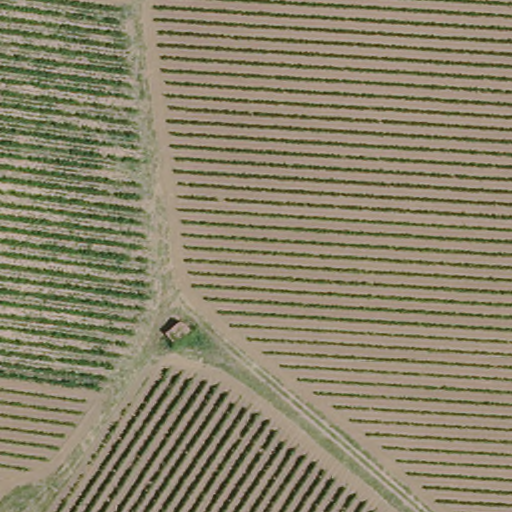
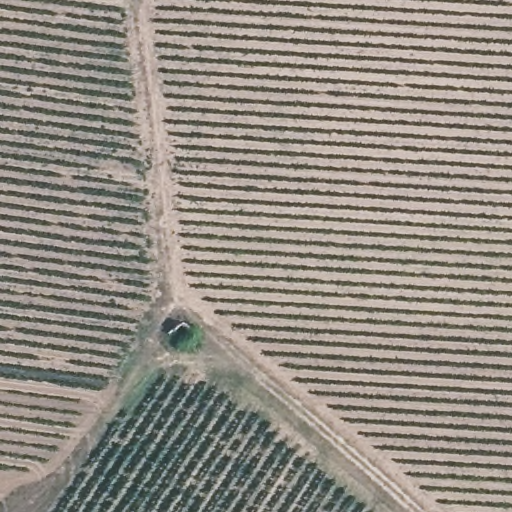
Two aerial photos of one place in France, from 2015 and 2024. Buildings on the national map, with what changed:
unchanged [(190,332),(176,346),(166,334),(179,321),(190,332)]

